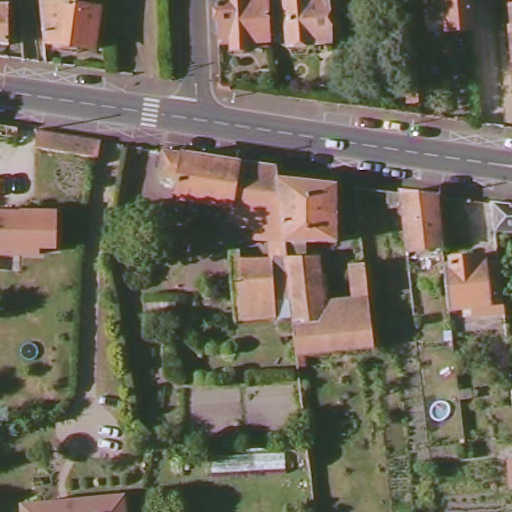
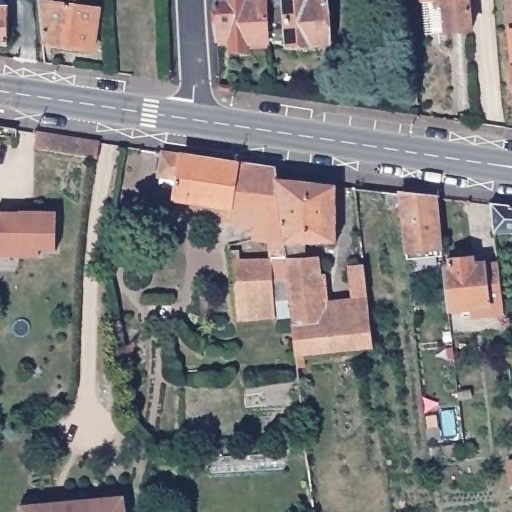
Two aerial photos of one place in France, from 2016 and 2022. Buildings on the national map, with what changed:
unchanged [(330,33),(311,34),(311,47),(291,48),(289,48),(287,0),(328,0),(330,33)]
unchanged [(475,33),(452,34),(450,7),(442,7),(442,0),(472,0),(475,33)]
unchanged [(505,0),(512,0),(512,71),(505,0)]
unchanged [(268,40),(244,40),(244,53),(230,53),(230,40),(217,40),(216,3),(267,2),(268,40)]
unchanged [(100,11),(94,52),(47,45),(43,4),(100,11)]
unchanged [(7,46),(0,45),(0,5),(7,6),(7,46)]
unchanged [(101,141),(101,142),(98,160),(87,159),(37,151),(40,132),(101,141)]
unchanged [(288,260),(291,283),(277,283),(278,318),(237,320),(234,262),(276,256),(275,237),(257,238),(256,225),(232,224),(232,222),(225,221),(225,207),(177,198),(180,179),(161,176),(162,151),(279,169),(280,180),(287,244),(288,260)]
unchanged [(332,187),(338,244),(287,244),(280,180),(332,187)]
unchanged [(439,197),(444,249),(408,253),(402,193),(439,197)]
unchanged [(496,234),(492,203),(512,205),(512,234),(496,234)]
unchanged [(15,212),(50,211),(51,250),(40,250),(40,255),(20,256),(20,253),(0,253),(0,214),(15,214),(15,212)]
unchanged [(475,305),(451,307),(446,263),(452,263),(451,255),(475,254),(476,261),(499,259),(504,312),(491,312),(475,314),(475,305)]
unchanged [(325,305),(356,302),(352,268),(367,267),(371,301),(377,354),(299,359),(291,283),(288,260),(320,260),(325,305)]
unchanged [(21,512),(20,508),(69,504),(124,499),(126,512),(21,512)]

